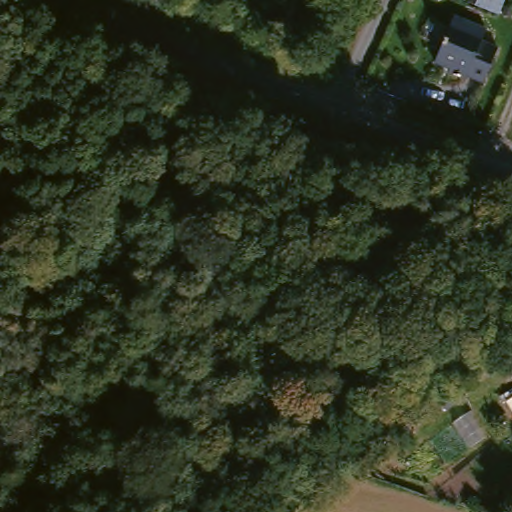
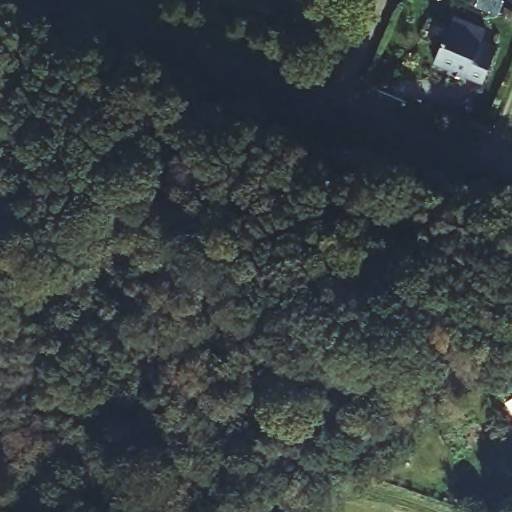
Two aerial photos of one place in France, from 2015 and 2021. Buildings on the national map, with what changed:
unchanged [(484,34),(478,44),(494,53),(477,85),(461,78),(459,80),(443,72),(445,69),(430,61),(453,17),(484,34)]

